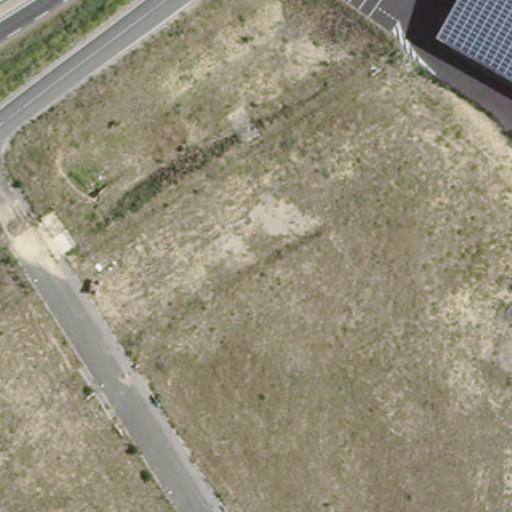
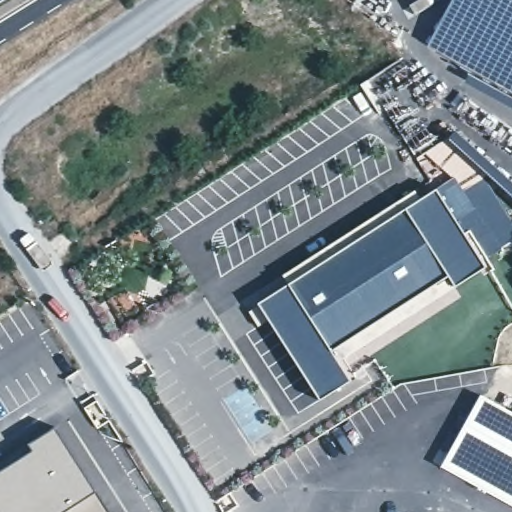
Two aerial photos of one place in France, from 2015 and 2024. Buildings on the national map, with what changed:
unchanged [(458,0),(512,0),(512,94),(430,51),(458,0)]
new [(348,384),(316,404),(266,322),(256,328),(247,313),(257,307),(256,305),(287,285),(282,277),(315,257),(415,195),(420,203),(437,193),(486,273),(450,296),(445,288),(331,357),(348,384)]
new [(481,395),(512,412),(512,505),(441,466),(481,395)]
new [(33,450),(30,445),(55,429),(95,492),(108,512),(0,512),(0,471),(33,450)]

